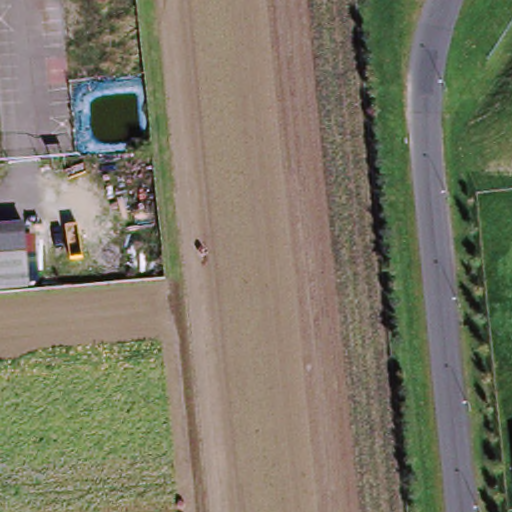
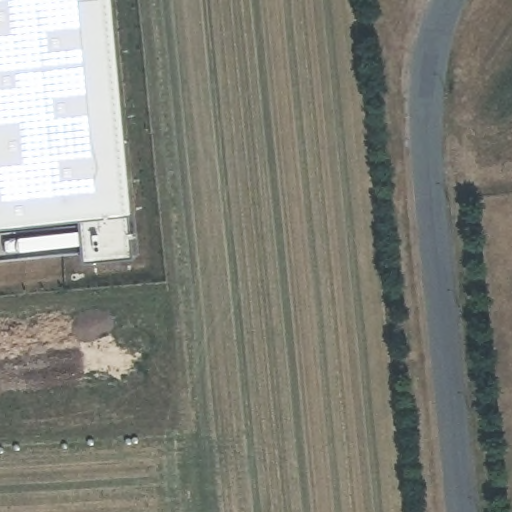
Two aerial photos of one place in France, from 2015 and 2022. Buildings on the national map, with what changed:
new [(132,215),(127,214),(134,259),(84,264),(77,218),(0,226),(0,0),(112,0),(132,215)]
demolished [(0,289),(0,231),(15,230),(17,288),(0,289)]

